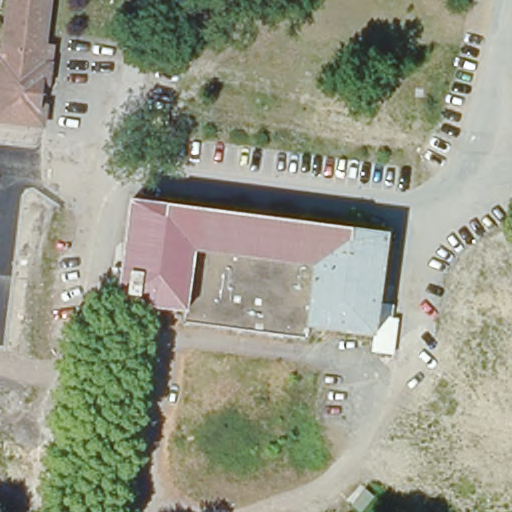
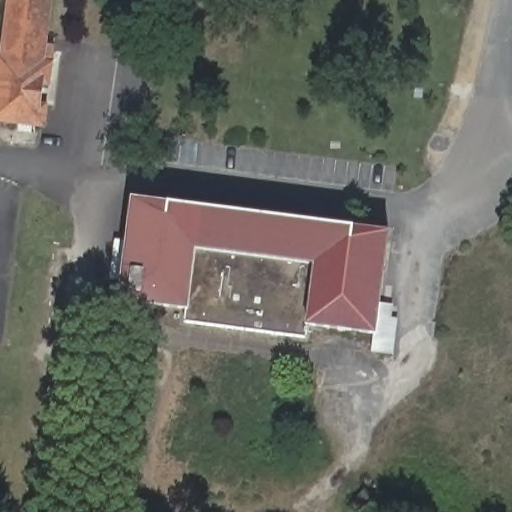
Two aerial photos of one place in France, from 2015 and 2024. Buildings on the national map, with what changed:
unchanged [(53,0),(45,60),(53,61),(46,127),(0,122),(0,11),(2,0),(53,0)]
unchanged [(124,267),(131,197),(389,230),(381,295),(379,310),(376,331),(309,322),(307,332),(184,318),(185,307),(120,300),(122,282),(124,267)]

